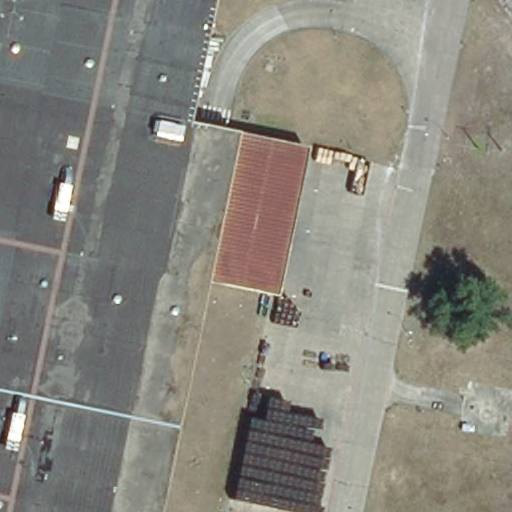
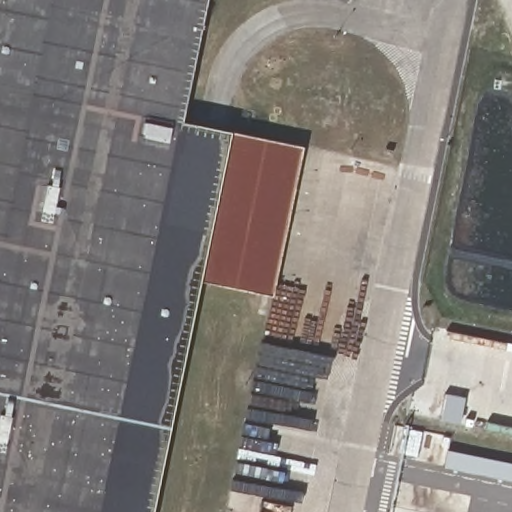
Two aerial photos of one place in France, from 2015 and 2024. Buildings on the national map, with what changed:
unchanged [(301,146),(269,294),(196,280),(147,512),(0,512),(0,0),(200,0),(175,121),(301,146)]
new [(512,480),(448,467),(451,450),(512,463),(512,480)]

